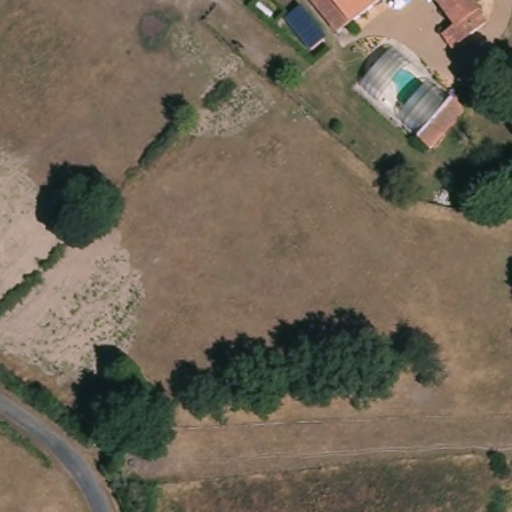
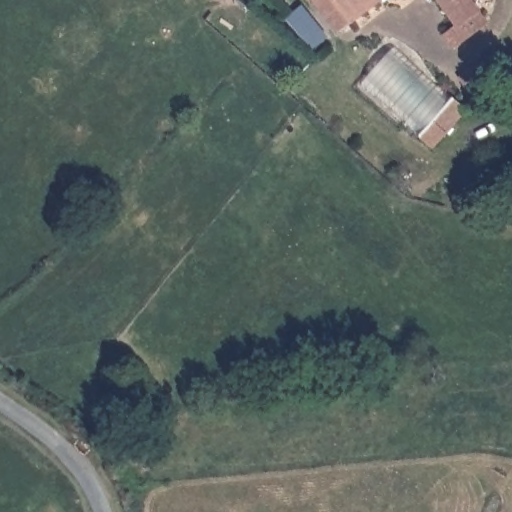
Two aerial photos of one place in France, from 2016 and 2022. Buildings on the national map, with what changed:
unchanged [(340,35),(311,0),(334,0),(385,0),(340,35)]
unchanged [(446,40),(458,31),(435,0),(470,0),(481,15),(479,15),(477,17),(484,29),(466,42),(456,50),(446,40)]
unchanged [(474,94),(465,80),(488,65),(498,79),(474,94)]
unchanged [(466,112),(432,150),(419,136),(452,99),(466,112)]

